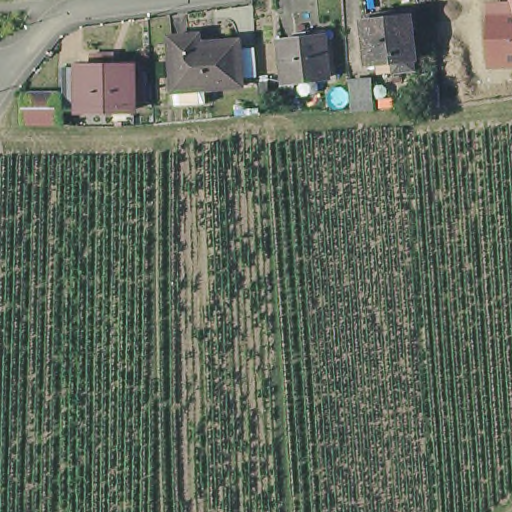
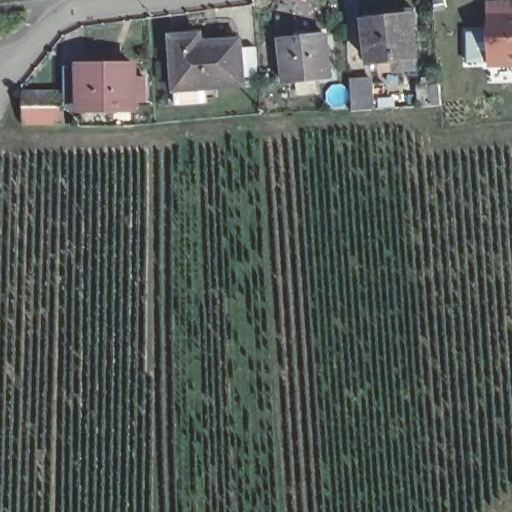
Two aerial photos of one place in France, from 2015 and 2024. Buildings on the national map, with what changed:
unchanged [(486,1),(510,0),(512,0),(512,70),(487,70),(486,1)]
unchanged [(371,17),(370,10),(420,5),(421,20),(414,21),(418,65),(399,67),(397,57),(376,59),(370,17),(371,17)]
unchanged [(175,102),(173,87),(178,87),(175,32),(195,30),(196,39),(245,35),(248,81),(212,84),(213,98),(175,102)]
unchanged [(300,39),(299,33),(319,31),(320,37),(330,36),(335,77),(287,82),(283,42),(300,39)]
unchanged [(150,101),(140,101),(140,109),(70,109),(70,93),(70,66),(101,66),(101,54),(115,54),(115,66),(140,66),(140,81),(150,80),(150,101)]
unchanged [(370,81),(373,111),(353,112),(350,112),(348,83),(370,81)]
unchanged [(438,86),(440,107),(420,108),(418,88),(438,86)]
unchanged [(27,94),(70,93),(70,109),(70,124),(27,124),(27,121),(27,94)]

